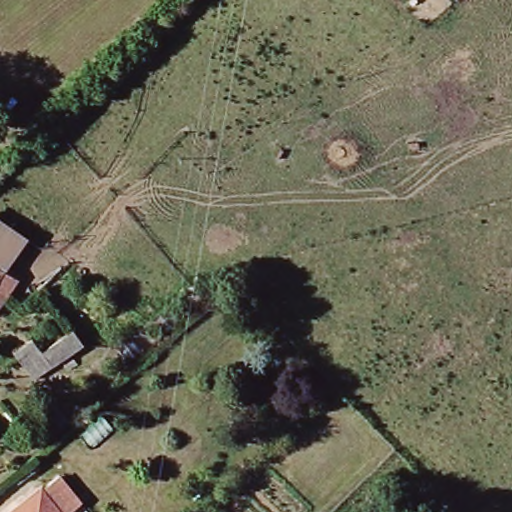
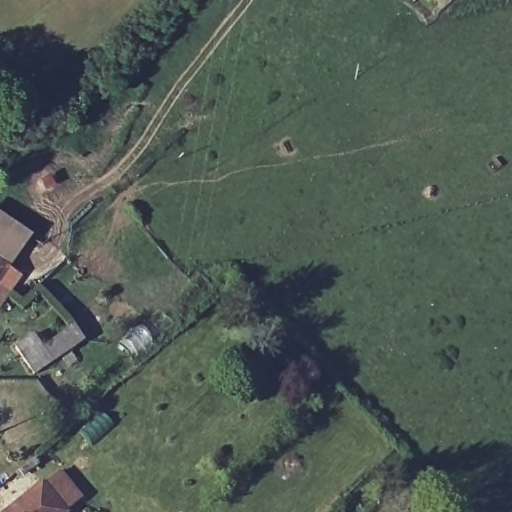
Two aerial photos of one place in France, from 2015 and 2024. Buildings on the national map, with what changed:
unchanged [(44,236),(21,270),(27,274),(3,310),(0,308),(0,207),(44,236)]
unchanged [(44,373),(25,344),(42,332),(54,345),(84,325),(93,338),(44,373)]
unchanged [(93,496),(74,512),(47,512),(36,496),(71,470),(93,496)]
unchanged [(47,512),(12,512),(36,496),(47,512)]

